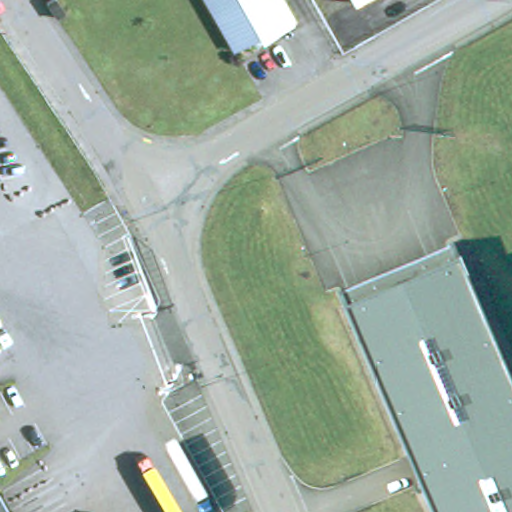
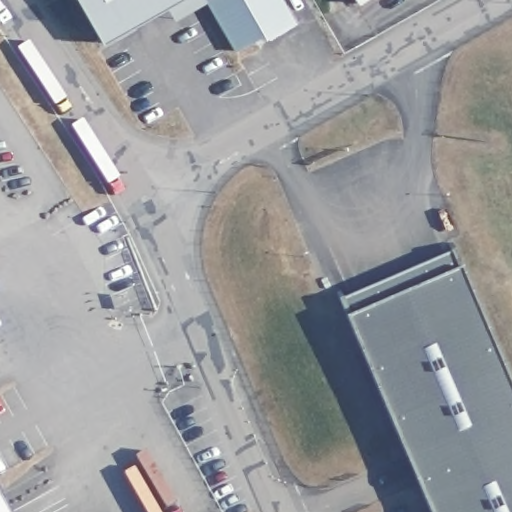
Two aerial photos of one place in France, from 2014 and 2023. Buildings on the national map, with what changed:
unchanged [(52,0),(60,12),(52,17),(45,4),(52,0)]
new [(172,3),(105,42),(81,0),(205,0),(206,2),(176,21),(172,3)]
unchanged [(230,47),(205,0),(284,0),(296,22),(265,38),(260,30),(230,47)]
unchanged [(371,0),(360,7),(357,0),(371,0)]
unchanged [(453,253),(512,390),(512,512),(432,512),(340,300),(453,253)]
unchanged [(0,497),(9,512),(0,512),(0,497)]

